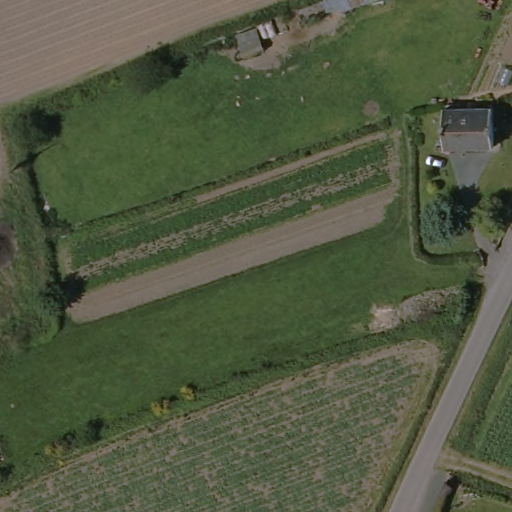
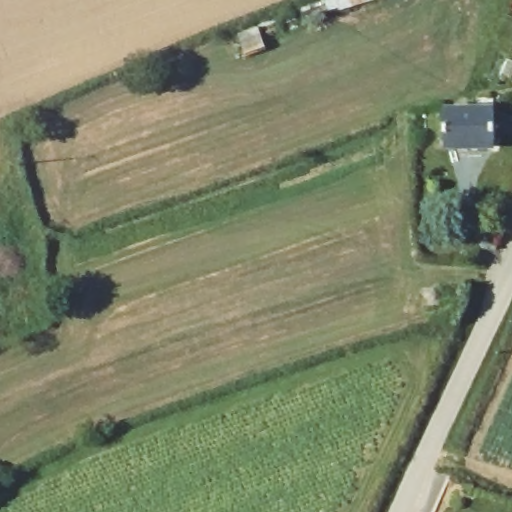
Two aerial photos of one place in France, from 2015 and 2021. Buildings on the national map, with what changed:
unchanged [(274,50),(249,57),(242,32),(266,24),(274,50)]
unchanged [(492,145),(448,151),(442,110),(487,102),(492,145)]

